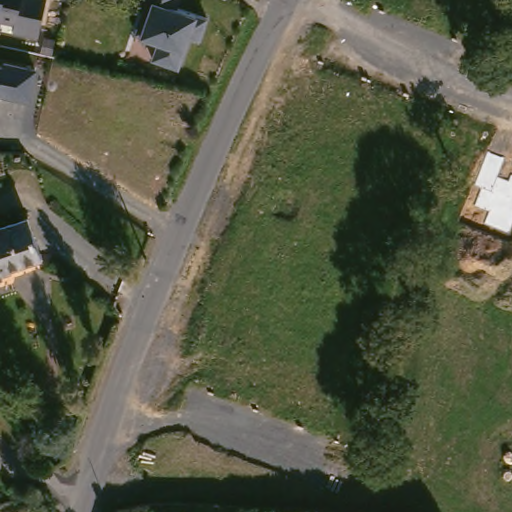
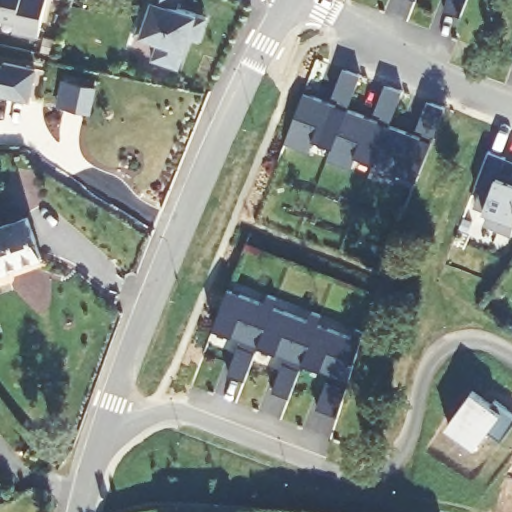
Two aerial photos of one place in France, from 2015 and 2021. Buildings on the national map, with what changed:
unchanged [(35,37),(5,31),(7,21),(0,19),(0,0),(45,0),(35,37)]
unchanged [(156,39),(137,32),(149,0),(178,0),(177,2),(199,11),(186,47),(179,65),(151,56),(156,39)]
new [(462,17),(445,10),(449,0),(469,0),(462,17)]
unchanged [(5,60),(37,66),(30,97),(0,90),(0,63),(4,64),(5,60)]
new [(304,96),(337,109),(341,101),(333,99),(343,71),(361,77),(348,113),(379,125),(382,117),(375,115),(386,87),(403,94),(389,129),(421,140),(424,133),(416,130),(427,103),(446,110),(417,181),(398,174),(393,187),(369,177),(374,165),(356,157),(351,170),(327,161),(332,148),(314,141),(309,154),(285,145),(304,96)]
new [(483,224),(487,211),(483,208),(489,192),(475,186),(487,151),(505,157),(501,167),(512,172),(512,230),(510,235),(483,224)]
unchanged [(6,268),(5,274),(0,275),(0,224),(35,215),(46,258),(6,268)]
new [(303,361),(290,397),(272,390),(283,362),(287,355),(259,345),(246,380),(228,374),(240,346),(242,338),(214,327),(229,288),(265,302),(268,293),(276,296),(273,305),(310,320),(313,311),(322,315),(318,323),(352,336),(356,327),(365,330),(339,415),(317,407),(327,380),(331,372),(303,361)]
new [(473,391),(492,405),(495,400),(512,413),(512,427),(501,442),(487,432),(471,452),(456,440),(460,434),(447,425),(473,391)]
unchanged [(307,512),(307,511),(308,498),(333,500),(332,512),(307,512)]

